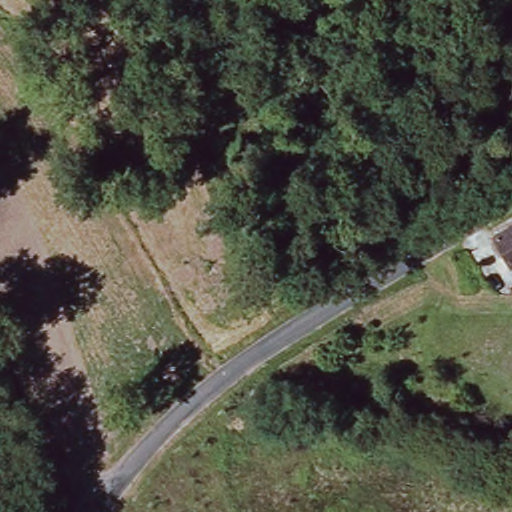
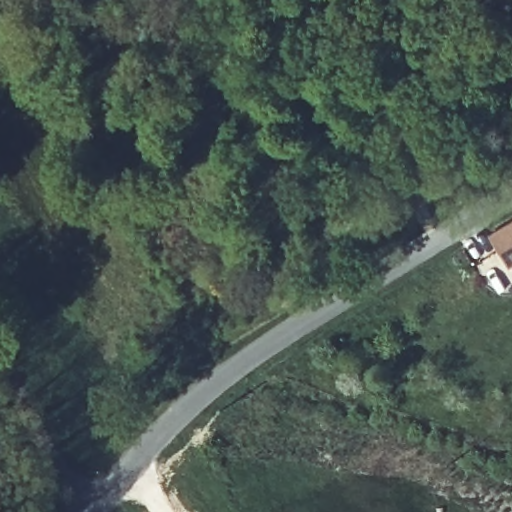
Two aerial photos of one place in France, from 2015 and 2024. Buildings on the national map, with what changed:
unchanged [(507,268),(490,238),(512,225),(512,266),(507,268)]

